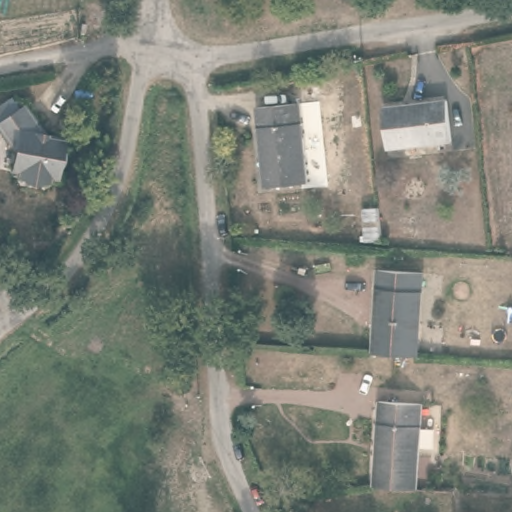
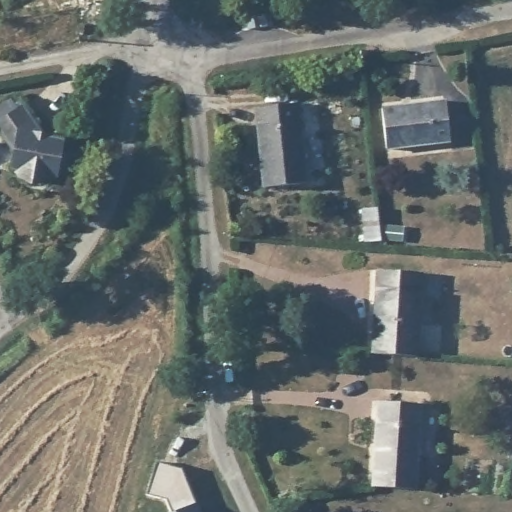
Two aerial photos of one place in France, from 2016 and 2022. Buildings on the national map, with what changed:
unchanged [(10,99),(17,109),(23,105),(40,129),(45,137),(64,140),(56,178),(50,177),(42,183),(24,179),(18,171),(12,170),(16,151),(0,129),(0,106),(10,99)]
unchanged [(382,108),(446,101),(451,142),(387,149),(382,108)]
unchanged [(257,108),(299,104),(307,183),(264,188),(257,108)]
unchanged [(364,209),(378,208),(381,241),(366,242),(364,209)]
unchanged [(378,270),(422,273),(417,357),(373,354),(378,270)]
unchanged [(379,401),(421,404),(415,489),(373,487),(379,401)]
new [(156,462),(181,469),(198,512),(169,512),(164,500),(146,495),(156,462)]

